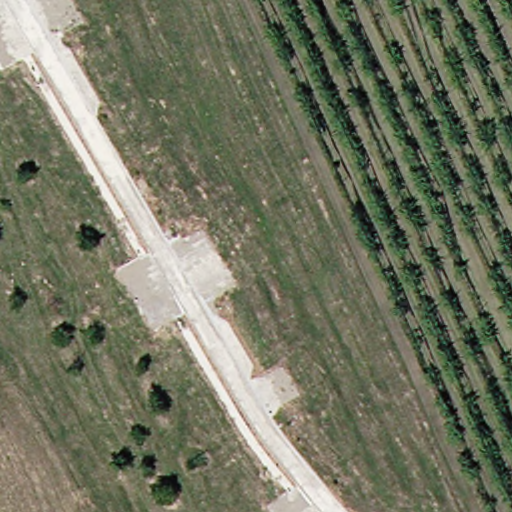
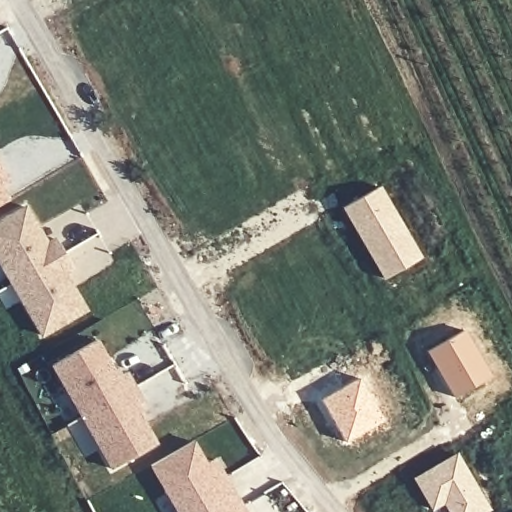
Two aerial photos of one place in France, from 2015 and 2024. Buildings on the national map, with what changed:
new [(9,181),(0,185),(0,166),(9,181)]
new [(9,200),(0,205),(0,185),(9,200)]
new [(383,281),(341,208),(380,186),(422,258),(383,281)]
new [(27,208),(49,245),(57,240),(74,269),(65,273),(87,311),(44,336),(0,260),(0,224),(27,208)]
new [(453,399),(426,352),(463,329),(490,376),(453,399)]
new [(95,340),(117,377),(125,372),(142,402),(134,407),(155,444),(112,469),(51,365),(95,340)]
new [(344,443),(320,399),(360,377),(383,421),(344,443)]
new [(190,441),(204,464),(213,459),(222,476),(240,506),(243,512),(177,512),(150,465),(190,441)]
new [(447,512),(442,505),(431,511),(412,478),(458,452),(490,510),(486,512),(447,512)]

